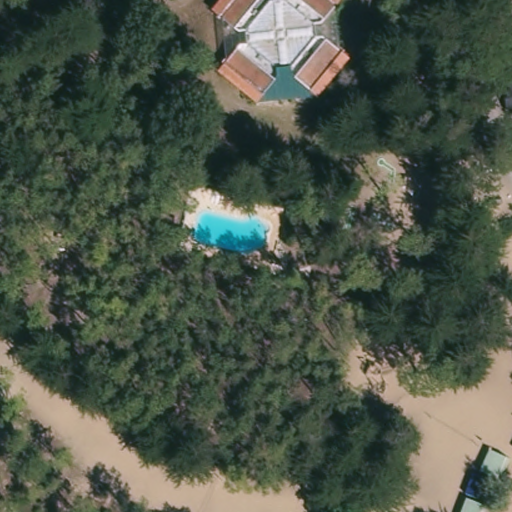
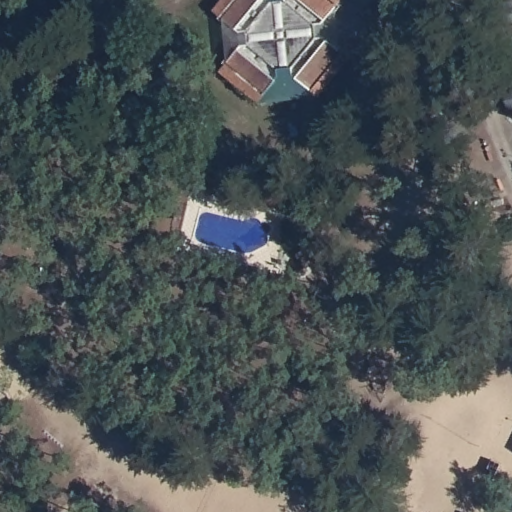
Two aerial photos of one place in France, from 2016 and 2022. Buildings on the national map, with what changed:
unchanged [(276,2),(277,0),(329,0),(324,11),(317,7),(312,17),(316,29),(326,33),(328,29),(346,40),(322,89),(304,78),(307,72),(297,67),(284,71),(280,82),(285,86),(276,105),(230,81),(239,62),(246,65),(251,54),(247,43),(237,37),(232,42),(215,34),(232,0),(258,0),(269,6),(276,2)]
unchanged [(505,30),(491,14),(491,0),(512,0),(512,29),(505,30)]
unchanged [(499,112),(497,94),(509,78),(512,78),(512,124),(499,112)]

